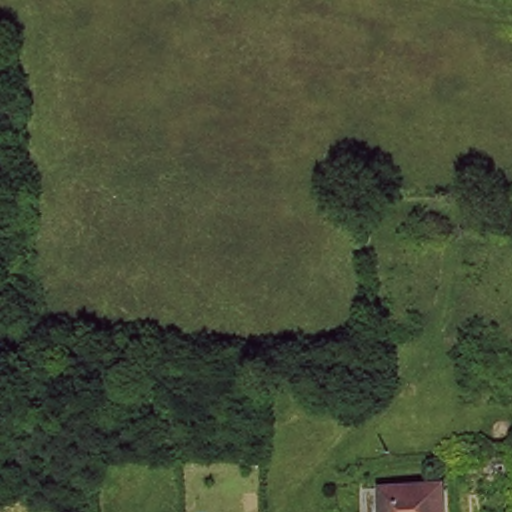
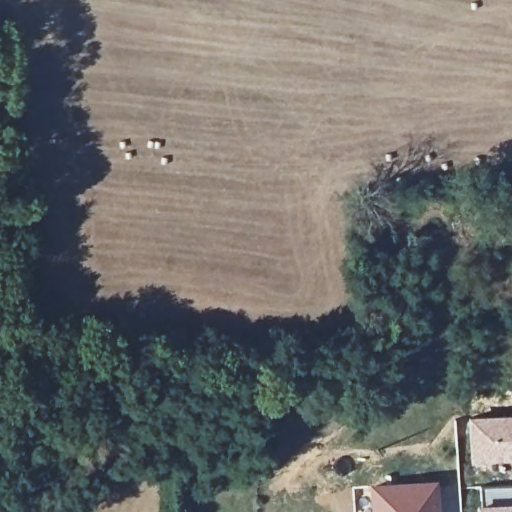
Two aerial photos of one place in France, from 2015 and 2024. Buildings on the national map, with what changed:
new [(512,460),(470,463),(467,417),(512,414),(512,460)]
new [(480,487),(512,486),(512,512),(475,512),(475,504),(480,504),(480,487)]
unchanged [(370,493),(438,492),(438,512),(370,512),(370,493)]

